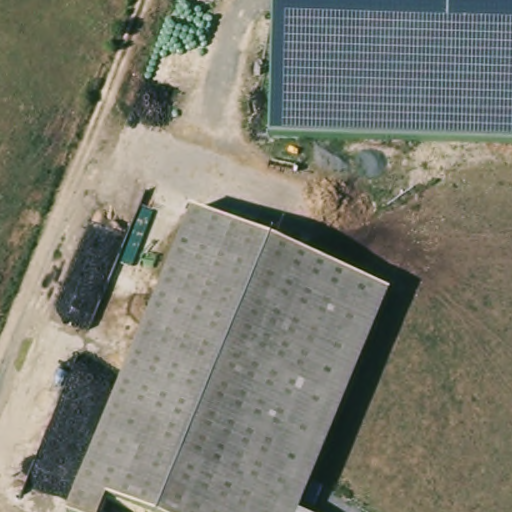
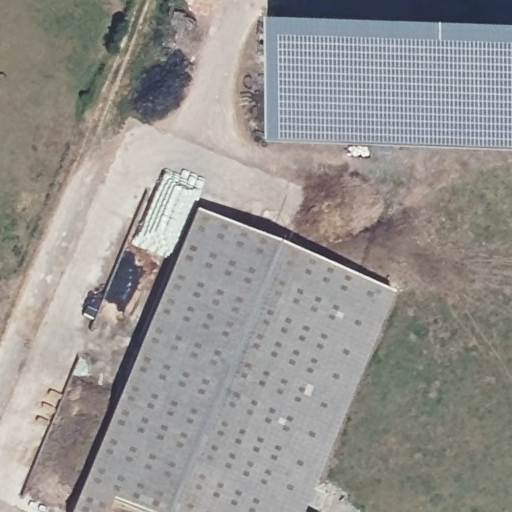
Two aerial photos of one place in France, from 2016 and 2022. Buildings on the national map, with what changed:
unchanged [(271,136),(276,12),(512,18),(512,143),(271,136)]
unchanged [(233,222),(385,286),(292,512),(135,512),(117,505),(111,502),(107,512),(73,512),(195,206),(233,222)]

